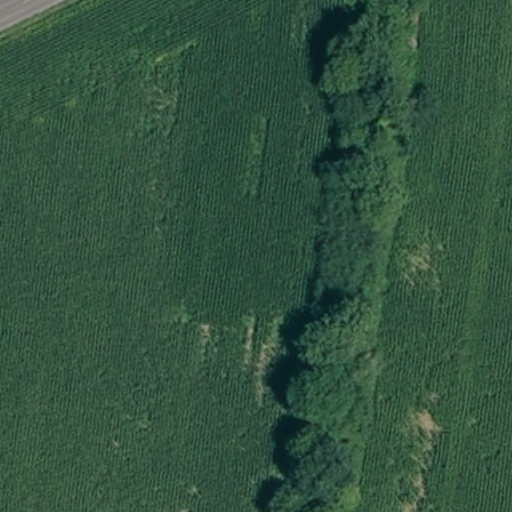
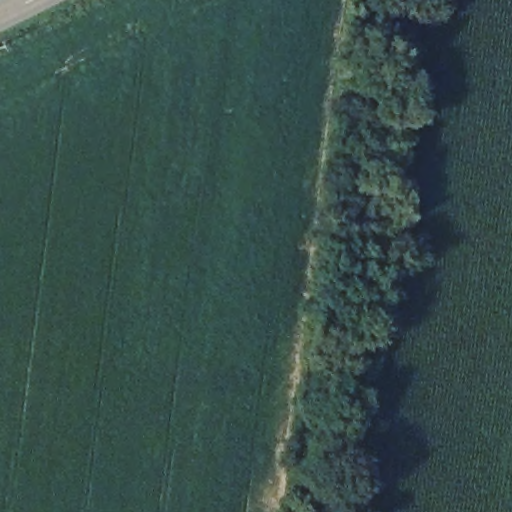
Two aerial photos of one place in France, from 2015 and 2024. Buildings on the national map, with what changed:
[]

